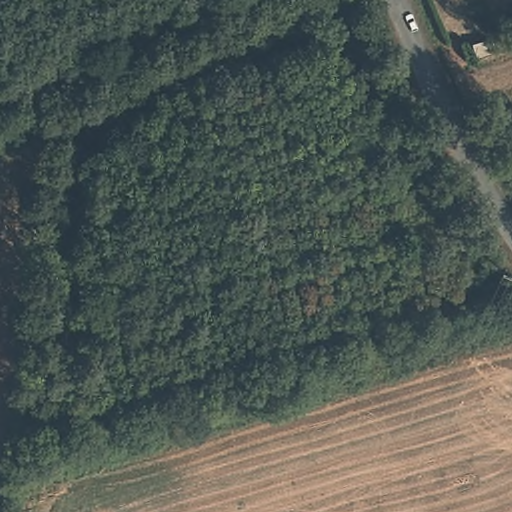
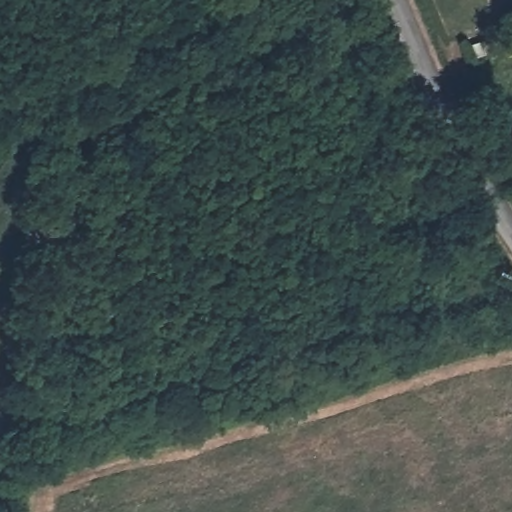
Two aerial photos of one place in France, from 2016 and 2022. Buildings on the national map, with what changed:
unchanged [(493,52),(475,57),(471,45),(488,40),(493,52)]

